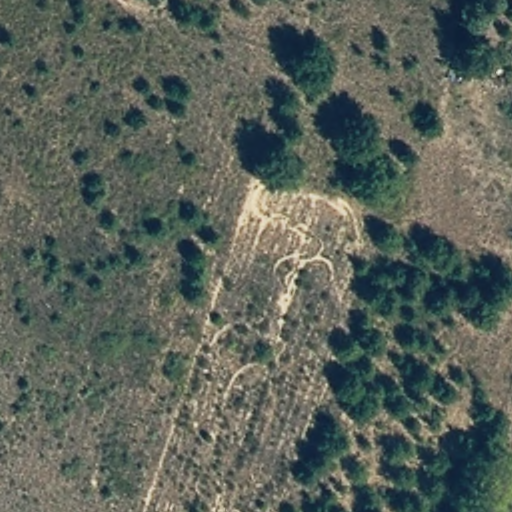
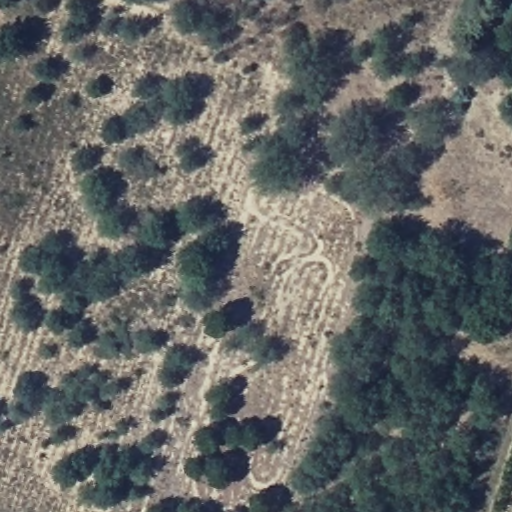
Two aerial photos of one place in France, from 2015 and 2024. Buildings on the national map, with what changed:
unchanged [(475,58),(463,81),(448,76),(457,51),(475,58)]

